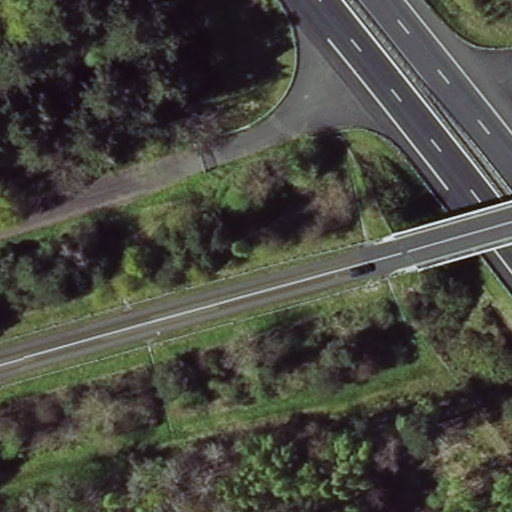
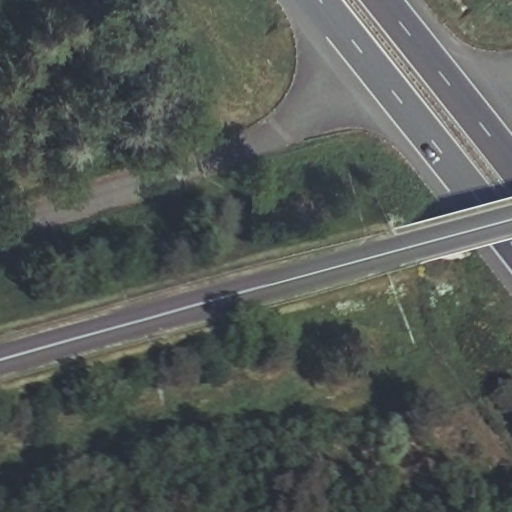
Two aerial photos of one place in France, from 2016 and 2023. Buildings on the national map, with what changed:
unchanged [(167,0),(182,23),(167,31),(152,8),(164,0),(167,0)]
unchanged [(206,65),(190,79),(170,54),(187,40),(206,65)]

